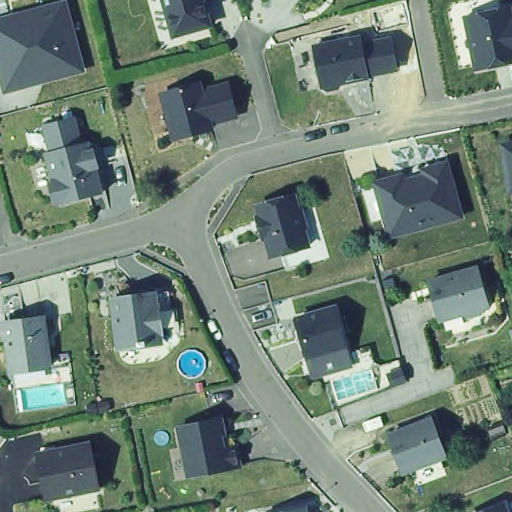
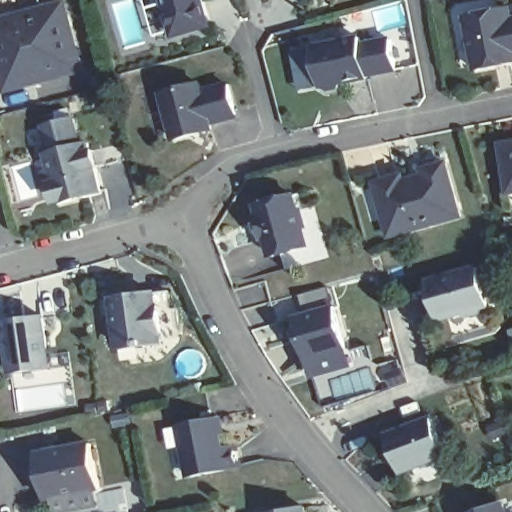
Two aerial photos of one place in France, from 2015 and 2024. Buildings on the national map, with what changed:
unchanged [(221,18),(224,27),(174,42),(162,0),(178,0),(186,28),(221,18)]
unchanged [(186,28),(178,0),(216,0),(221,18),(186,28)]
unchanged [(3,73),(0,62),(0,22),(16,18),(65,4),(83,70),(35,84),(8,91),(3,73)]
unchanged [(465,18),(512,9),(512,67),(474,74),(465,18)]
unchanged [(361,41),(363,48),(392,43),(398,71),(368,78),(369,80),(343,85),(340,90),(328,94),(322,89),(315,49),(361,41)]
unchanged [(173,140),(162,95),(198,86),(200,95),(226,88),(234,115),(207,123),(208,127),(210,131),(198,134),(173,140)]
unchanged [(75,114),(82,141),(90,139),(103,189),(62,201),(61,199),(56,195),(52,185),(56,179),(48,150),(53,149),(46,123),(75,114)]
unchanged [(502,149),(512,147),(512,196),(508,197),(502,149)]
unchanged [(447,167),(462,220),(391,240),(376,188),(447,167)]
unchanged [(280,189),(285,204),(287,204),(292,220),(290,221),(295,239),(270,247),(259,249),(253,229),(251,229),(245,213),(248,212),(245,200),(280,189)]
unchanged [(301,199),(316,249),(273,262),(270,247),(295,239),(290,221),(292,220),(287,204),(301,199)]
unchanged [(490,304),(485,305),(483,310),(470,314),(465,311),(443,318),(436,298),(440,297),(435,280),(432,280),(431,279),(480,265),(490,304)]
unchanged [(161,294),(163,312),(169,311),(172,340),(153,343),(139,344),(139,348),(132,349),(132,346),(113,348),(108,316),(106,317),(104,301),(109,300),(146,295),(161,294)]
unchanged [(316,378),(311,362),(300,322),(336,311),(348,351),(353,368),(316,378)]
unchanged [(46,320),(53,369),(15,375),(8,325),(46,320)]
unchanged [(416,479),(410,464),(404,466),(397,447),(401,445),(395,427),(390,429),(389,428),(433,411),(448,448),(442,451),(448,467),(416,479)]
unchanged [(190,423),(227,416),(232,445),(242,443),(246,465),(200,474),(185,477),(179,448),(193,445),(190,423)]
unchanged [(95,447),(103,492),(50,502),(41,457),(95,447)]
unchanged [(512,512),(474,512),(501,502),(512,498),(512,512)]
unchanged [(317,506),(318,512),(286,512),(317,506)]

